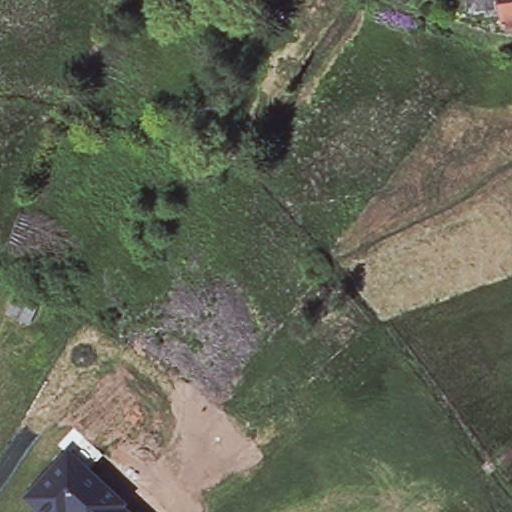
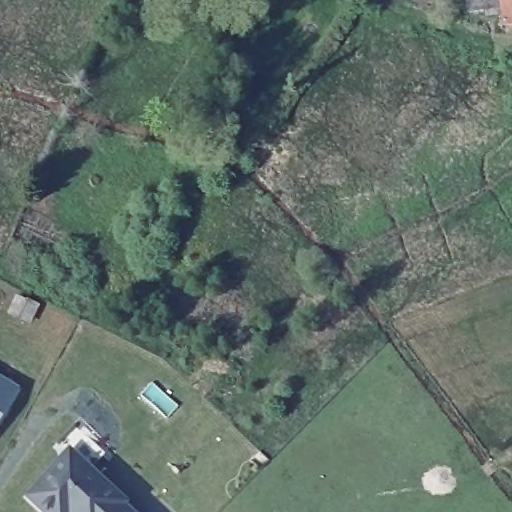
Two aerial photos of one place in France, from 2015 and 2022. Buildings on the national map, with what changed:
unchanged [(498,11),(467,13),(467,0),(512,0),(512,26),(500,27),(498,11)]
new [(21,390),(0,424),(0,377),(21,390)]
unchanged [(40,512),(24,498),(69,448),(131,504),(128,508),(133,512),(40,512)]

